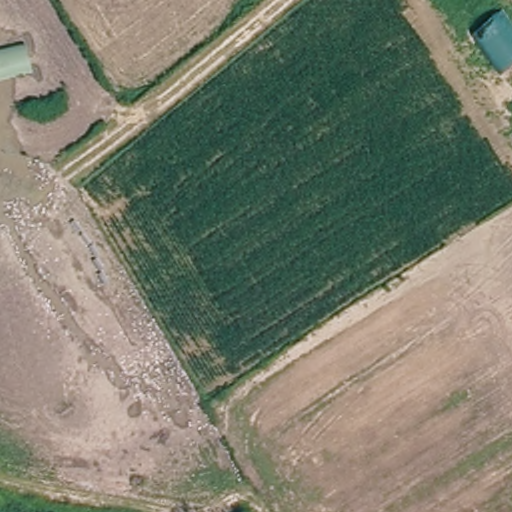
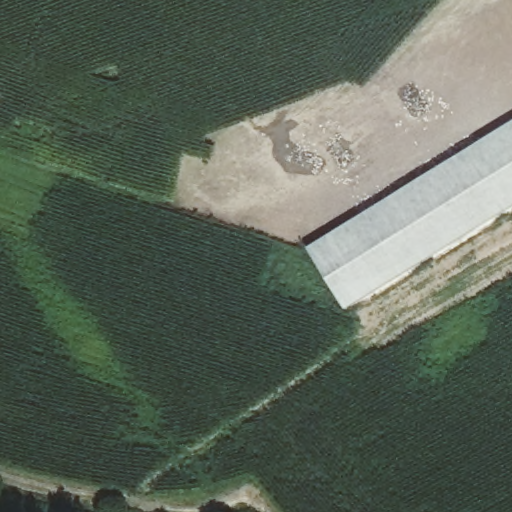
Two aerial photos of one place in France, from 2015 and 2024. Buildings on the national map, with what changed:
new [(346,310),(307,250),(512,126),(512,209),(346,310)]

